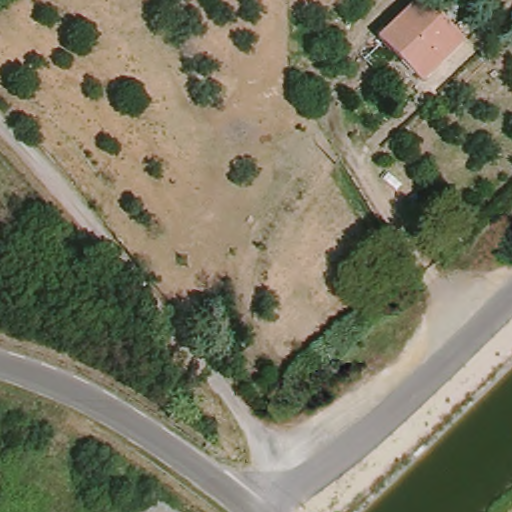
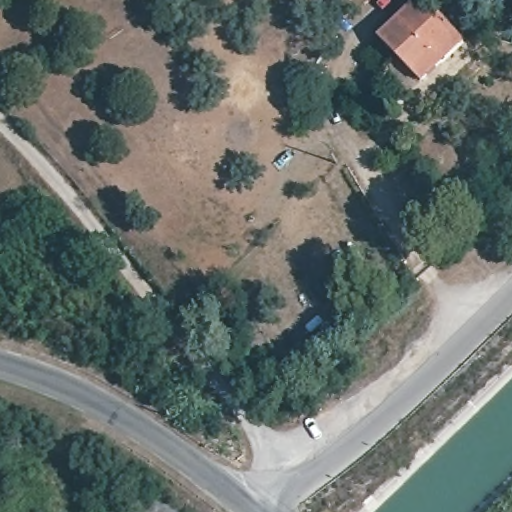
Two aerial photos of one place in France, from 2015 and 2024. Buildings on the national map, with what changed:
unchanged [(424,84),(383,37),(422,0),(428,0),(468,44),(424,84)]

